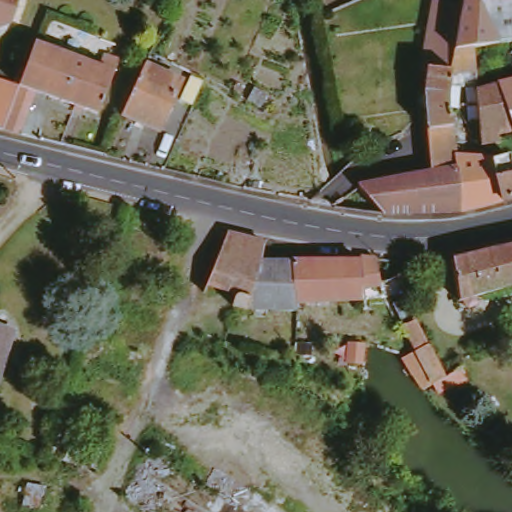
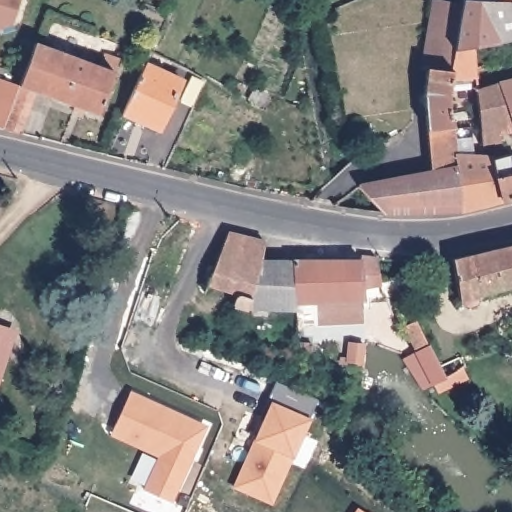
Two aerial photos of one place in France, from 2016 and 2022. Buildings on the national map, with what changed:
unchanged [(6,31),(0,29),(0,0),(20,0),(11,28),(6,31)]
unchanged [(512,0),(512,4),(506,4),(505,0),(512,0)]
unchanged [(467,212),(384,216),(364,186),(437,176),(436,98),(441,76),(431,75),(443,5),(469,6),(506,4),(512,4),(512,21),(498,24),(501,45),(483,49),(486,74),(459,79),(457,117),(459,158),(467,212)]
unchanged [(501,45),(512,42),(512,60),(504,61),(501,45)]
unchanged [(25,86),(41,45),(105,69),(111,57),(125,61),(103,118),(41,93),(25,139),(8,134),(25,86)]
unchanged [(191,81),(170,130),(131,115),(153,63),(191,81)]
unchanged [(512,84),(512,110),(509,85),(512,84)]
unchanged [(487,146),(487,91),(509,85),(512,110),(512,147),(492,148),(487,146)]
unchanged [(467,212),(459,158),(496,160),(508,206),(467,212)]
unchanged [(512,204),(508,206),(496,160),(512,158),(512,204)]
unchanged [(231,236),(269,246),(265,262),(298,263),(306,307),(306,316),(259,315),(239,309),(240,303),(243,300),(248,298),(257,301),(260,288),(218,279),(231,236)]
unchanged [(457,263),(512,250),(512,290),(461,303),(457,263)]
unchanged [(298,263),(363,266),(364,259),(381,261),(386,282),(368,288),(370,309),(306,307),(298,263)]
unchanged [(445,375),(433,381),(404,326),(414,319),(445,375)]
unchanged [(18,339),(0,386),(0,332),(18,339)]
new [(269,504),(233,487),(271,405),(266,403),(275,384),(316,403),(269,504)]
new [(204,426),(168,501),(142,488),(161,449),(113,425),(130,390),(204,426)]
demolished [(109,449),(95,474),(49,450),(62,426),(109,449)]
demolished [(257,506),(248,499),(254,491),(256,488),(290,512),(265,512),(257,506)]
demolished [(265,512),(251,512),(257,506),(265,512)]

